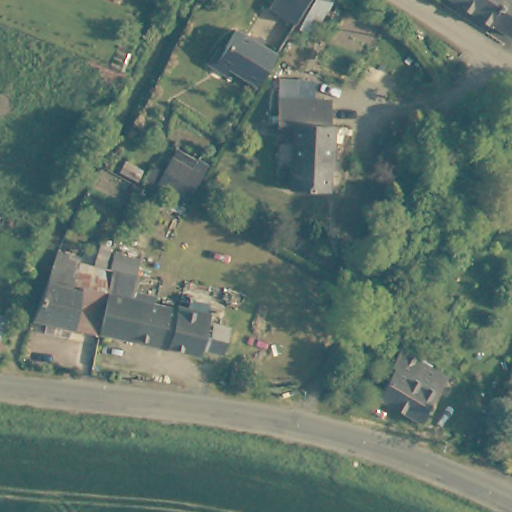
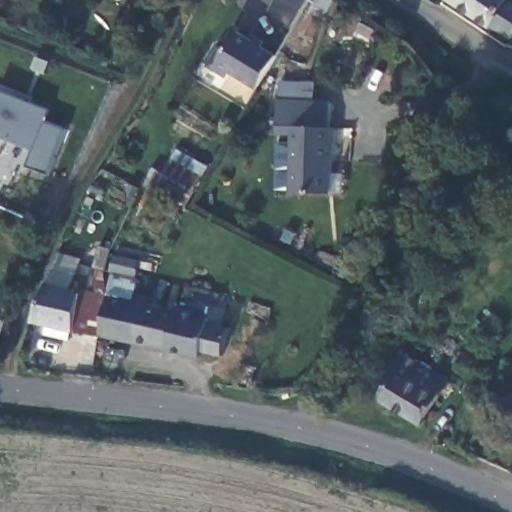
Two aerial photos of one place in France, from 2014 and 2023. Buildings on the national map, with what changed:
unchanged [(295,14),(272,0),(303,0),(300,5),(295,14)]
unchanged [(487,27),(450,0),(512,0),(512,32),(509,36),(489,24),(487,27)]
unchanged [(258,76),(231,60),(228,66),(209,54),(220,35),(225,38),(237,20),(277,44),(258,76)]
unchanged [(330,126),(337,126),(337,162),(332,162),(332,192),(293,192),(293,136),(277,136),(277,101),(277,85),(313,85),(313,101),(330,101),(330,126)]
new [(68,129),(49,174),(29,166),(34,149),(0,136),(0,93),(1,90),(49,110),(46,120),(68,129)]
unchanged [(140,192),(149,174),(159,178),(164,166),(189,175),(194,164),(207,168),(184,210),(140,192)]
unchanged [(50,339),(53,328),(38,324),(59,259),(60,256),(84,261),(78,290),(101,296),(112,300),(103,340),(75,333),(73,344),(50,339)]
unchanged [(115,285),(140,291),(139,299),(161,304),(159,311),(171,314),(173,314),(182,317),(183,314),(195,317),(212,321),(210,329),(232,334),(225,359),(205,355),(204,362),(103,340),(112,300),(115,285)]
unchanged [(446,384),(421,427),(378,402),(394,373),(392,372),(399,359),(400,357),(446,384)]

